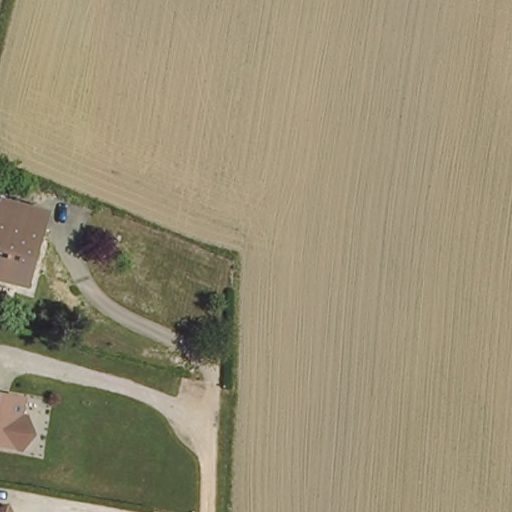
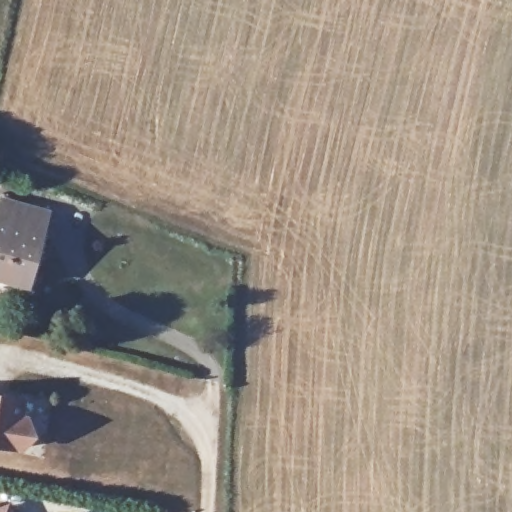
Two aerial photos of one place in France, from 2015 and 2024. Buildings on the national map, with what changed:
unchanged [(18,284),(0,279),(0,221),(6,200),(50,213),(32,266),(26,286),(18,284)]
unchanged [(15,413),(22,415),(27,431),(15,445),(0,441),(0,392),(18,395),(15,413)]
unchanged [(5,499),(11,512),(0,512),(0,501),(5,499)]

